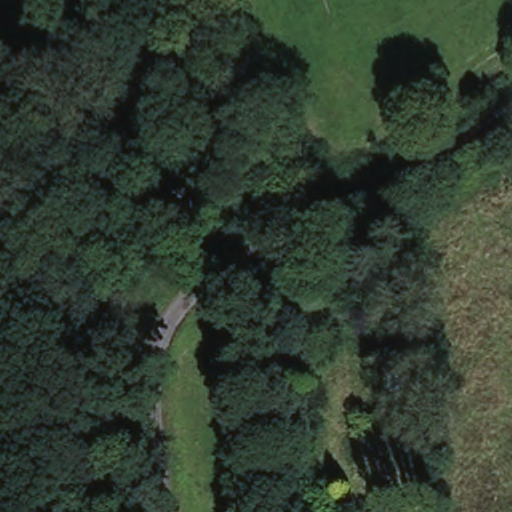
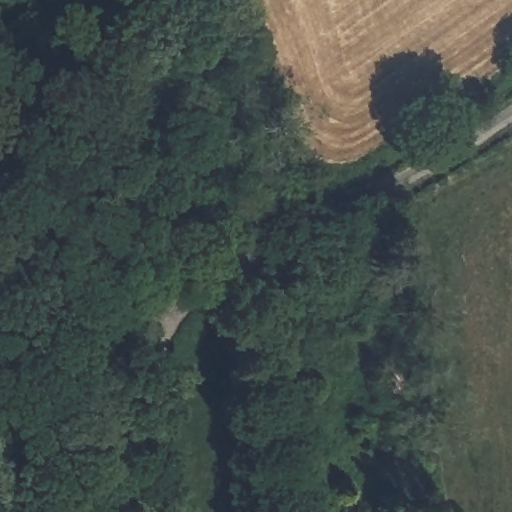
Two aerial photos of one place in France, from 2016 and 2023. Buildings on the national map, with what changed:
unchanged [(385,346),(401,344),(406,388),(389,390),(385,346)]

